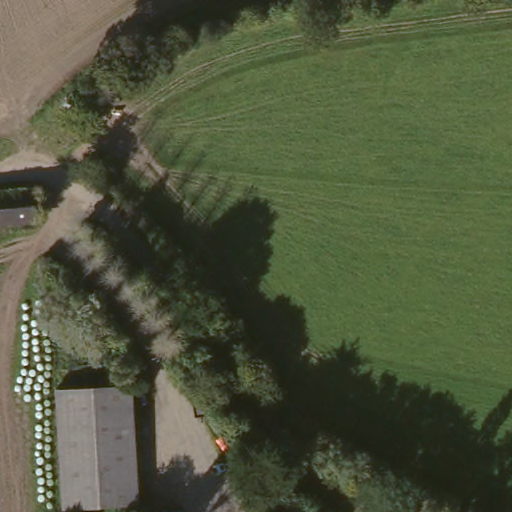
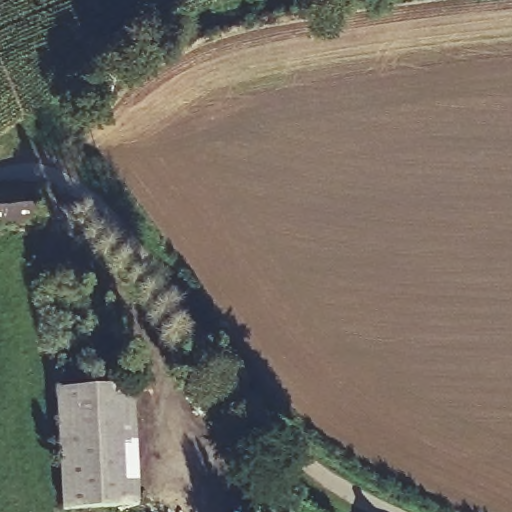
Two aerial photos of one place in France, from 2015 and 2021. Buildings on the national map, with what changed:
unchanged [(0,187),(36,184),(39,214),(0,218),(0,187)]
unchanged [(72,506),(68,388),(137,384),(141,500),(72,506)]

